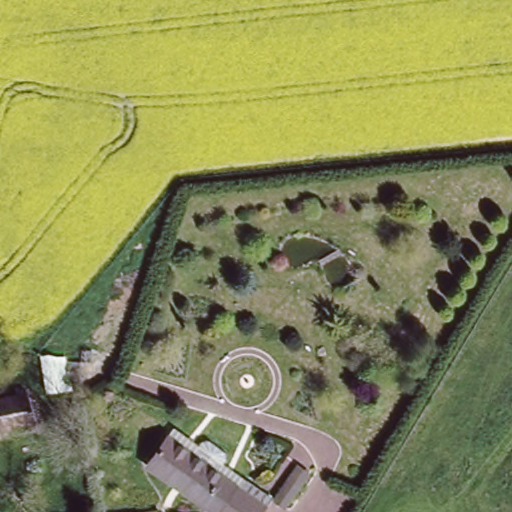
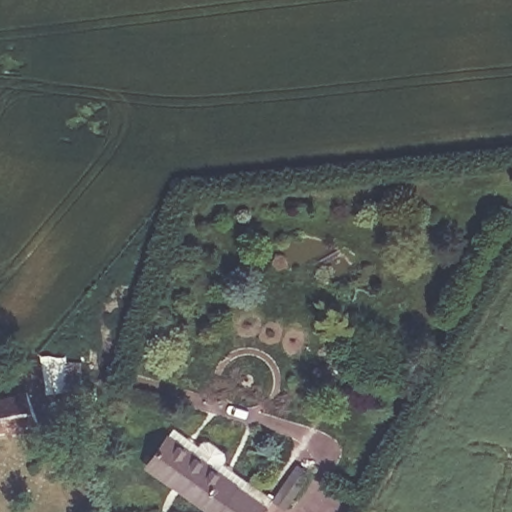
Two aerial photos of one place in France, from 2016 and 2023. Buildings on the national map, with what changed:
unchanged [(8,398),(14,397),(25,395),(29,421),(18,423),(0,426),(0,385),(5,384),(8,398)]
unchanged [(195,512),(138,475),(154,452),(158,454),(163,446),(168,436),(193,453),(197,444),(224,456),(218,469),(239,481),(271,501),(264,512),(195,512)]
unchanged [(296,467),(311,474),(286,510),(271,501),(284,482),(296,467)]

